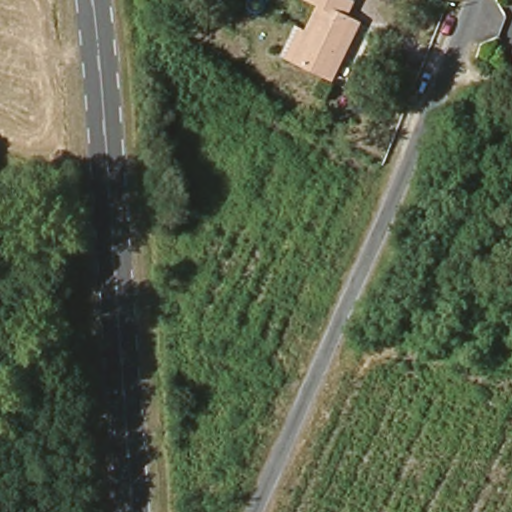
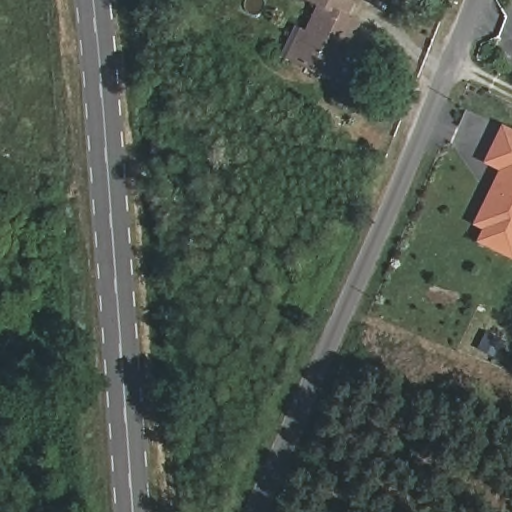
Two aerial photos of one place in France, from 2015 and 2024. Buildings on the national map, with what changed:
unchanged [(298,31),(311,37),(321,11),(309,6),(312,0),(344,0),(357,5),(351,21),(363,26),(339,82),(286,62),(298,31)]
unchanged [(130,4),(142,3),(143,16),(131,17),(130,4)]
new [(490,228),(480,223),(497,189),(506,169),(491,161),(499,144),(507,128),(512,131),(512,254),(502,249),(484,241),(490,228)]

